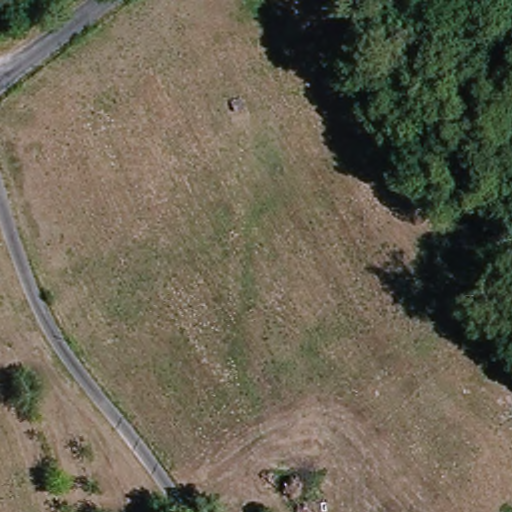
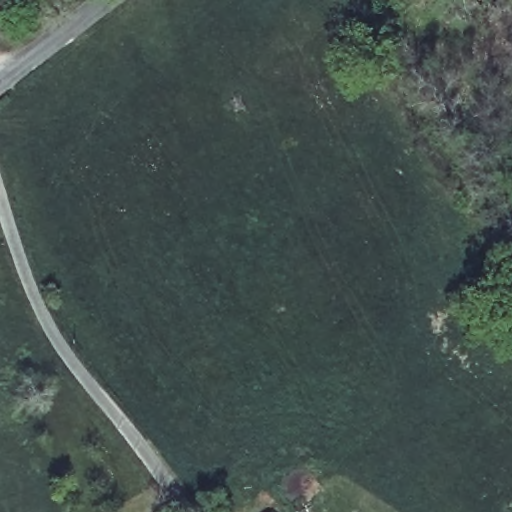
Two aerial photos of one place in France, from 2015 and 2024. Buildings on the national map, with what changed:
unchanged [(250,116),(227,124),(220,104),(241,95),(250,116)]

